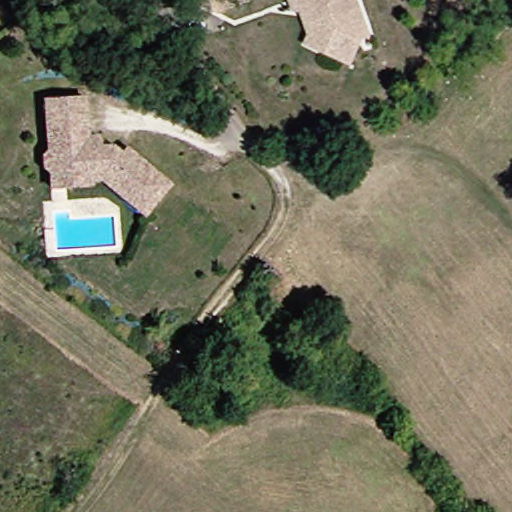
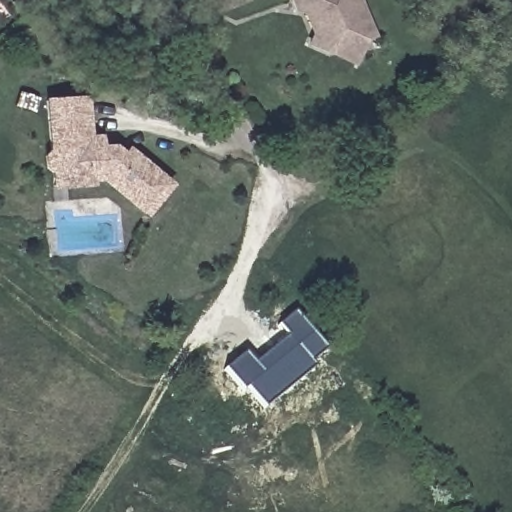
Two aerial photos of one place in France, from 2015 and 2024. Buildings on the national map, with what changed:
unchanged [(210,10),(191,0),(233,0),(210,10)]
unchanged [(329,57),(308,47),(309,42),(299,12),(294,13),(290,0),(352,0),(367,41),(352,69),(329,57)]
unchanged [(97,181),(57,183),(56,168),(51,164),(50,151),(55,146),(51,96),(91,94),(93,134),(104,133),(105,144),(118,143),(128,151),(133,146),(174,182),(149,211),(108,175),(97,176),(97,181)]
unchanged [(59,236),(50,237),(50,225),(59,224),(59,236)]
new [(309,363),(314,368),(261,412),(244,391),(241,393),(223,371),(243,355),(252,366),(288,338),(278,325),(293,312),(324,351),(309,363)]

